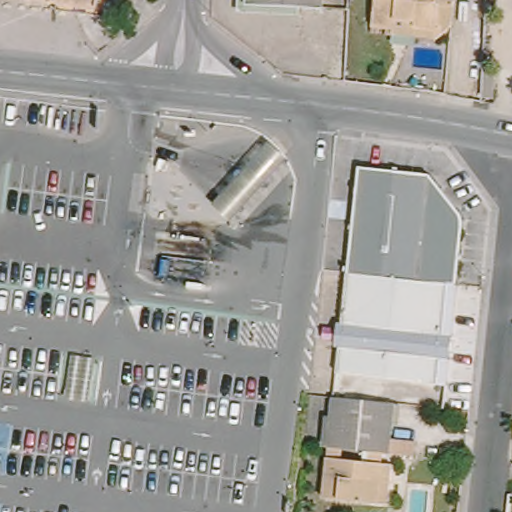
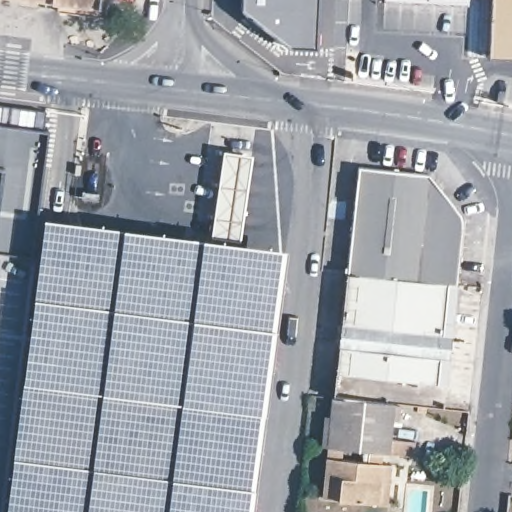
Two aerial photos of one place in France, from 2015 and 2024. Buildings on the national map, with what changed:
unchanged [(1,0),(93,0),(91,12),(1,0)]
unchanged [(242,4),(242,0),(322,0),(321,7),(242,4)]
unchanged [(415,33),(415,27),(394,25),(393,35),(371,33),(375,0),(441,0),(435,35),(415,33)]
unchanged [(452,34),(435,47),(392,42),(393,35),(394,25),(415,27),(415,33),(435,35),(441,0),(451,0),(455,5),(452,34)]
new [(491,0),(512,0),(512,57),(488,56),(491,0)]
new [(286,46),(240,9),(242,4),(318,7),(314,47),(286,46)]
new [(47,130),(32,258),(27,257),(6,427),(0,426),(0,124),(47,130)]
demolished [(209,205),(269,140),(285,161),(230,224),(209,205)]
unchanged [(359,169),(429,177),(462,226),(456,288),(447,287),(347,277),(359,169)]
new [(42,216),(285,247),(247,512),(174,512),(7,492),(42,216)]
unchanged [(450,357),(438,356),(434,386),(337,375),(347,277),(447,287),(441,330),(453,331),(450,357)]
unchanged [(384,508),(374,507),(317,501),(328,401),(391,407),(387,441),(412,445),(410,460),(379,457),(378,467),(388,469),(384,508)]
new [(10,427),(5,472),(0,471),(0,426),(10,427)]
new [(174,512),(0,512),(0,492),(174,512)]

